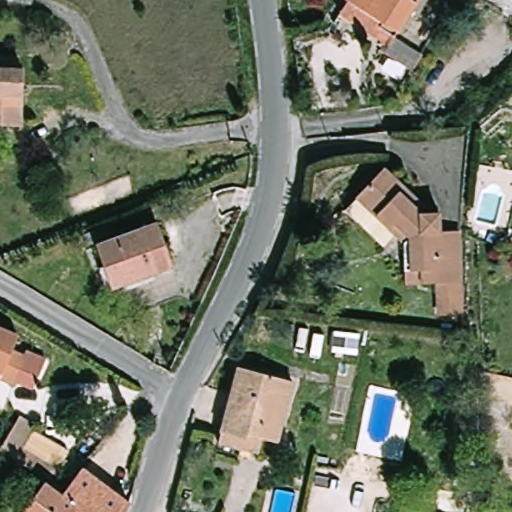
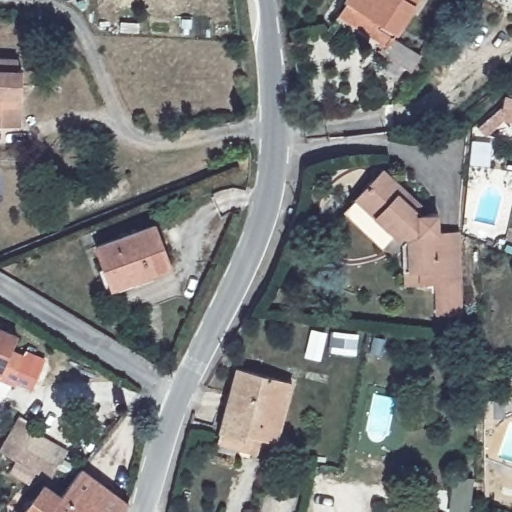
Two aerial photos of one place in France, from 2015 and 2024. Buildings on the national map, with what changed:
unchanged [(375,44),(377,41),(340,17),(352,0),(367,0),(372,3),(373,0),(425,0),(390,54),(375,44)]
unchanged [(18,71),(25,71),(25,126),(0,126),(0,59),(18,59),(18,71)]
unchanged [(410,257),(409,242),(394,225),(381,236),(346,196),(359,185),(390,155),(427,200),(418,207),(426,217),(435,212),(442,214),(445,234),(467,233),(469,303),(447,304),(447,278),(425,279),(410,280),(410,257)]
unchanged [(107,275),(95,242),(155,216),(173,263),(134,280),(113,289),(107,275)]
unchanged [(0,325),(27,336),(22,348),(36,354),(37,350),(55,357),(44,386),(27,380),(23,388),(6,382),(5,384),(0,382),(0,325)]
unchanged [(235,366),(292,378),(277,442),(247,434),(245,441),(219,434),(235,366)]
unchanged [(50,465),(53,467),(47,476),(1,441),(3,437),(8,432),(50,465)]
unchanged [(57,488),(60,491),(70,476),(93,492),(83,507),(90,512),(16,512),(40,477),(57,488)]

